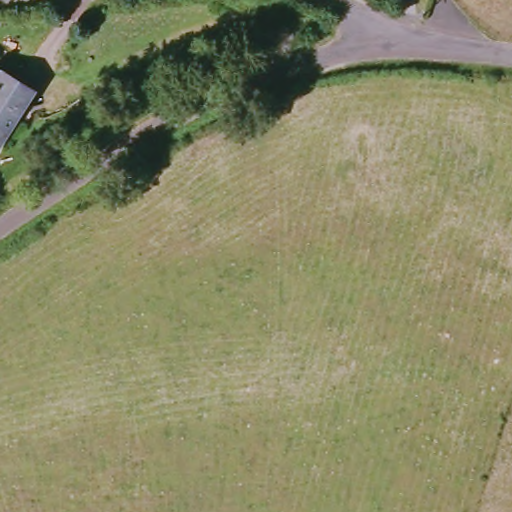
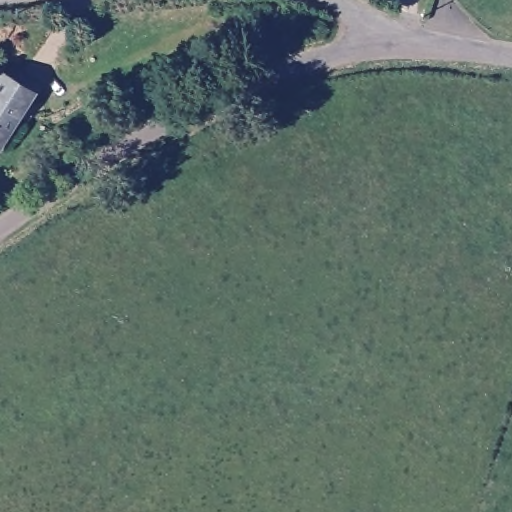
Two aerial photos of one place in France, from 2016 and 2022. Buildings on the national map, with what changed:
unchanged [(0,145),(0,64),(36,90),(0,145)]

